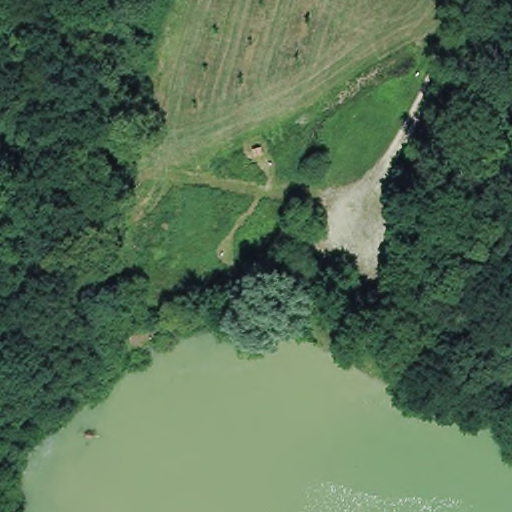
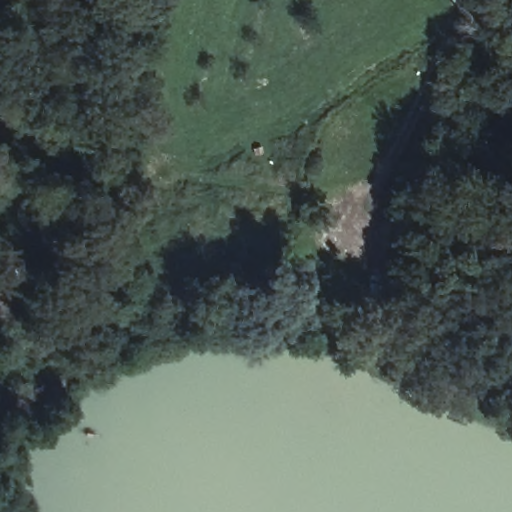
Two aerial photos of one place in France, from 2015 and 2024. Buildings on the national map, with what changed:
unchanged [(347,305),(334,329),(300,313),(311,288),(347,305)]

